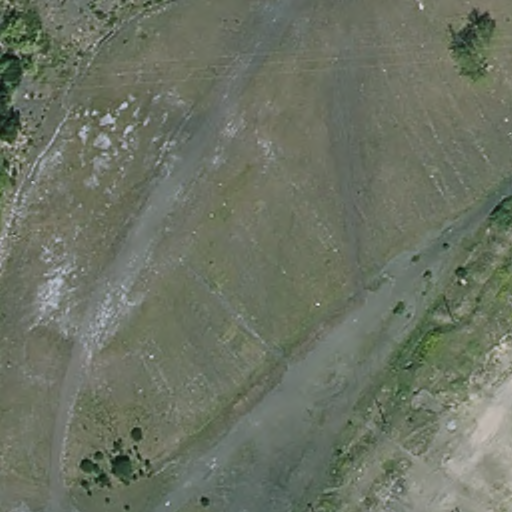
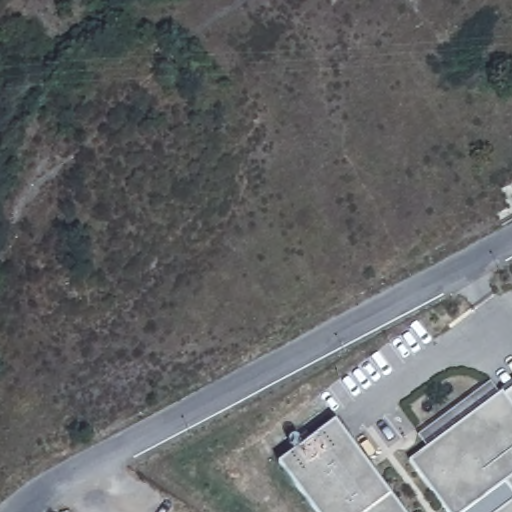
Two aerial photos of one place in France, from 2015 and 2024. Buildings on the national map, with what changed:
new [(410,461),(502,391),(505,394),(512,389),(512,512),(449,512),(410,461)]
new [(279,462),(336,419),(405,512),(316,512),(279,462)]

